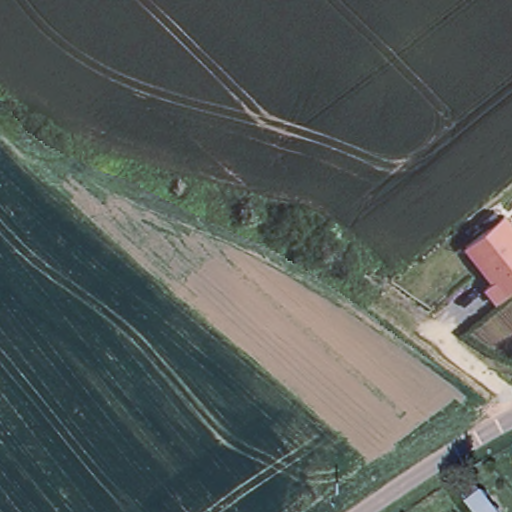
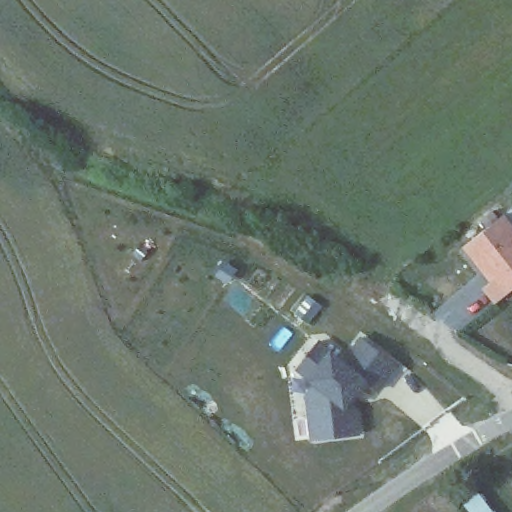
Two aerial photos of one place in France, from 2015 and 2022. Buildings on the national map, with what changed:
unchanged [(512,228),(512,304),(502,312),(490,297),(502,287),(495,279),(492,282),(470,255),(508,224),(512,228)]
new [(380,392),(366,382),(348,405),(358,411),(361,434),(311,441),(305,393),(317,385),(311,381),(309,381),(295,370),(320,337),(331,347),(345,358),(362,336),(400,367),(380,392)]

